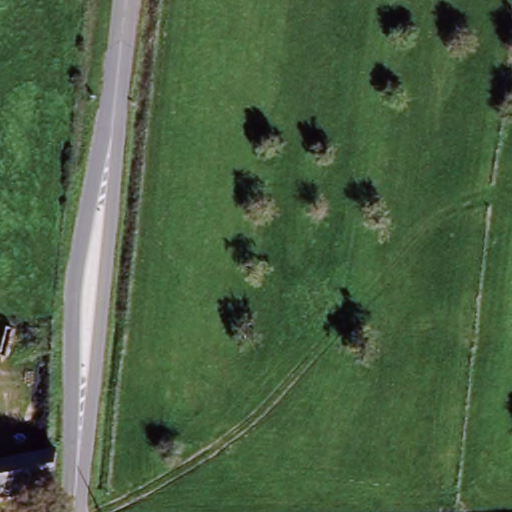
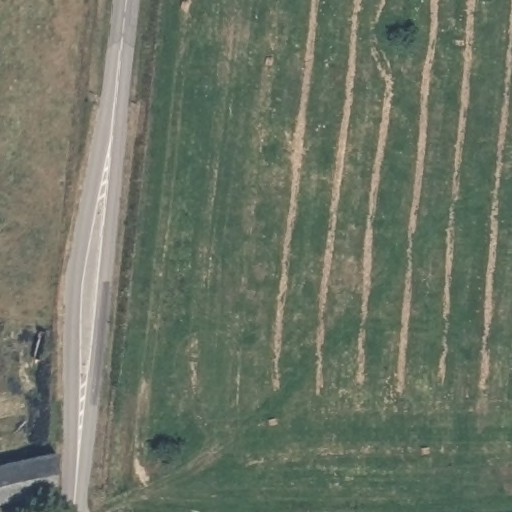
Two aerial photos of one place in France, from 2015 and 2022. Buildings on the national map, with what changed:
unchanged [(55,496),(0,506),(0,470),(52,461),(55,496)]

